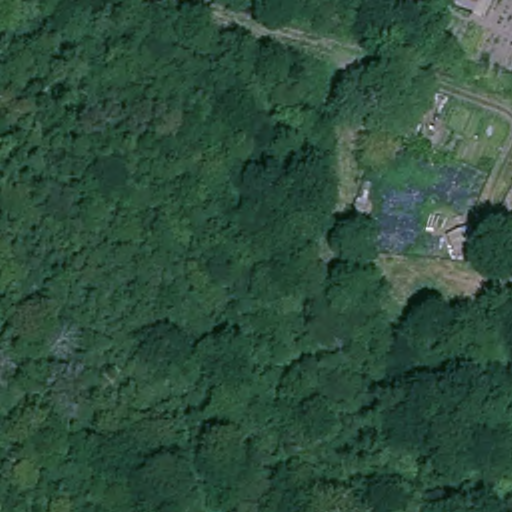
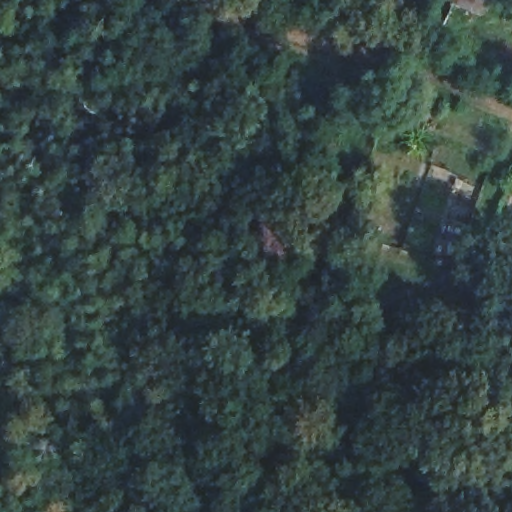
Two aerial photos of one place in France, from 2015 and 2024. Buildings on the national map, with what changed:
unchanged [(438,0),(486,0),(476,19),(438,2),(438,0)]

